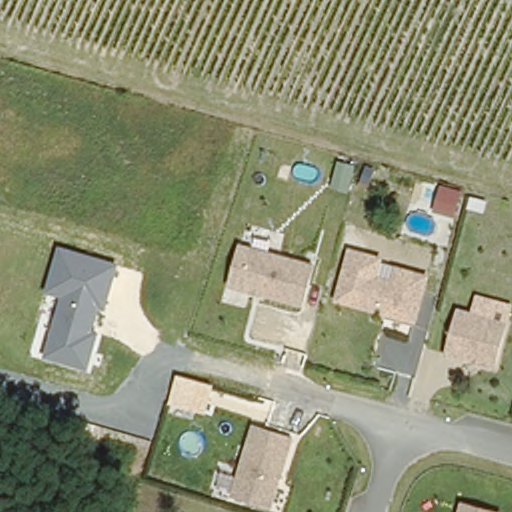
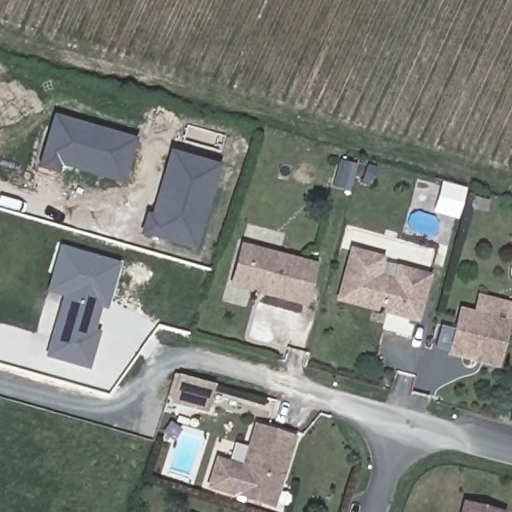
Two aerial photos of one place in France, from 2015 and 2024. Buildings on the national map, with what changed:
new [(121,183),(60,165),(58,174),(37,168),(52,114),(135,138),(121,183)]
new [(220,164),(194,251),(139,234),(145,212),(150,214),(169,150),(220,164)]
unchanged [(457,218),(433,210),(442,183),(466,190),(457,218)]
unchanged [(106,310),(100,309),(94,332),(100,334),(90,370),(45,357),(60,299),(43,293),(58,245),(119,263),(106,310)]
unchanged [(412,331),(384,323),(390,302),(376,298),(375,303),(341,295),(353,247),(381,254),(380,259),(427,271),(412,331)]
unchanged [(305,306),(232,288),(241,249),(315,266),(305,306)]
unchanged [(497,370),(448,356),(461,309),(508,321),(497,370)]
unchanged [(208,417),(171,406),(177,374),(217,385),(208,417)]
unchanged [(296,437),(273,509),(231,495),(255,426),(296,437)]
unchanged [(489,512),(455,512),(457,503),(489,512)]

